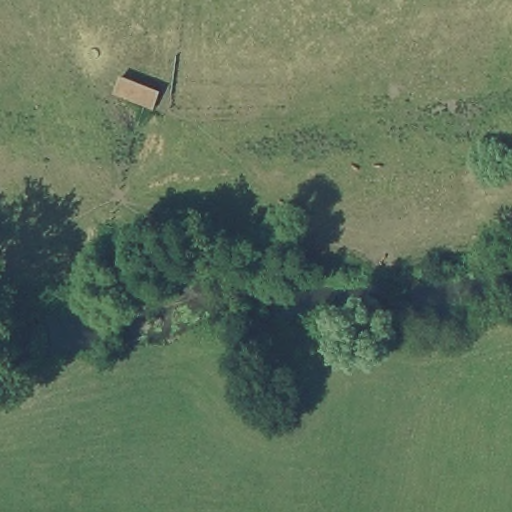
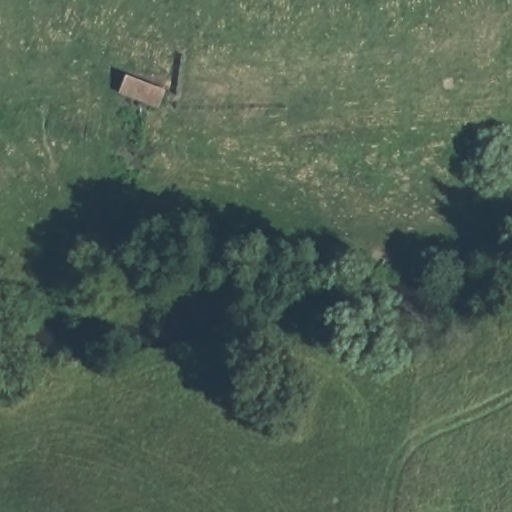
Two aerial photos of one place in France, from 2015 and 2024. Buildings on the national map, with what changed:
unchanged [(160,114),(118,98),(125,76),(167,93),(160,114)]

